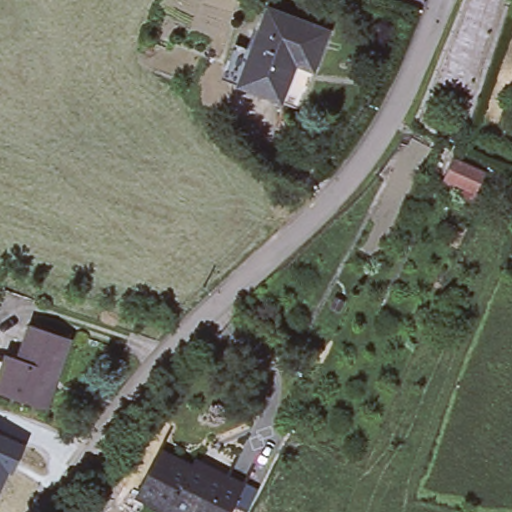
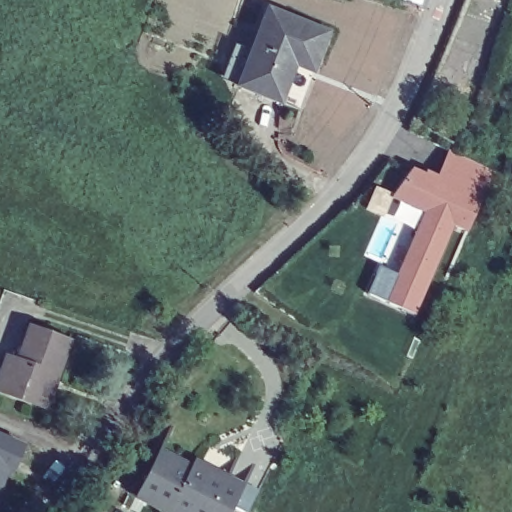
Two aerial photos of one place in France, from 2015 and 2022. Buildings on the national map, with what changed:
unchanged [(320,29),(305,68),(290,106),(230,83),(261,7),(320,29)]
new [(469,232),(454,227),(416,315),(368,293),(379,267),(396,275),(424,212),(392,199),(412,168),(426,174),(428,171),(439,175),(449,151),(495,171),(469,232)]
demolished [(484,174),(475,196),(443,181),(450,161),(484,174)]
unchanged [(0,398),(0,378),(5,363),(16,367),(28,334),(66,347),(53,386),(48,383),(43,400),(39,411),(0,398)]
unchanged [(5,471),(0,483),(0,435),(23,445),(15,462),(10,473),(5,471)]
unchanged [(151,456),(181,470),(193,448),(248,473),(228,512),(161,512),(136,500),(151,456)]

